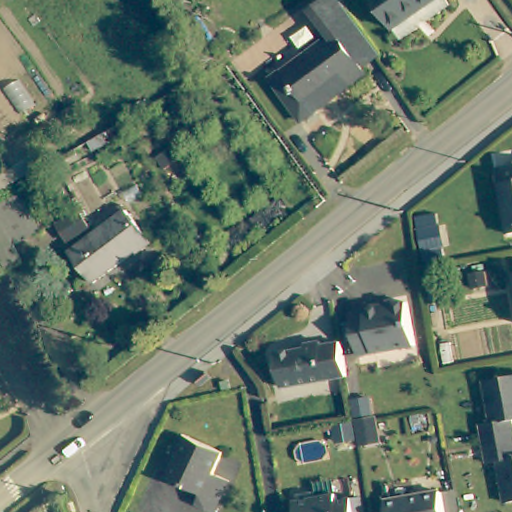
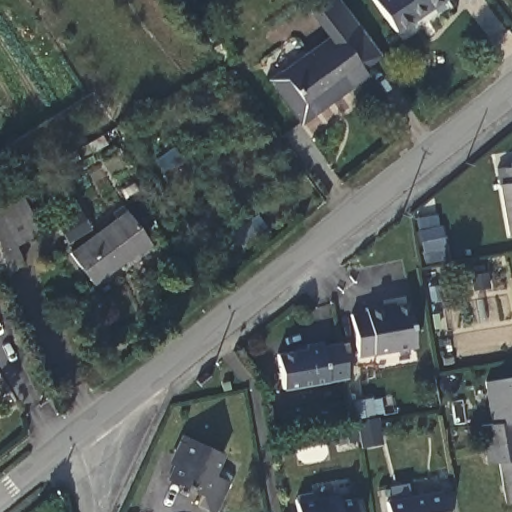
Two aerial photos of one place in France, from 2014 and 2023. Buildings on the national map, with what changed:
unchanged [(276,71),(330,33),(310,6),(319,0),(337,0),(343,8),(375,53),(360,65),(301,106),(276,71)]
unchanged [(396,37),(371,0),(443,0),(445,2),(396,37)]
unchanged [(295,121),(262,77),(275,68),(276,71),(301,106),(360,65),(364,71),(295,121)]
unchanged [(505,169),(512,168),(512,237),(510,237),(501,185),(507,184),(505,169)]
unchanged [(21,195),(39,235),(12,248),(0,222),(0,206),(21,195)]
unchanged [(147,246),(135,254),(131,249),(87,281),(64,247),(124,208),(147,246)]
unchanged [(20,266),(0,277),(0,222),(12,248),(20,266)]
unchanged [(512,275),(510,267),(512,267),(512,275)]
unchanged [(366,312),(365,308),(386,305),(386,309),(408,307),(415,347),(357,356),(353,314),(366,312)]
unchanged [(276,350),(304,345),(303,341),(318,339),(319,343),(338,341),(344,375),(281,385),(276,350)]
unchanged [(512,500),(503,501),(498,461),(488,462),(483,425),(493,423),(486,382),(512,378),(512,500)]
unchanged [(375,414),(357,417),(355,403),(372,400),(375,414)]
unchanged [(381,442),(362,445),(358,420),(377,417),(381,442)]
unchanged [(357,437),(339,440),(336,425),(355,422),(357,437)]
unchanged [(221,452),(211,475),(226,481),(212,512),(193,505),(199,492),(166,478),(180,452),(174,450),(181,435),(221,452)]
unchanged [(295,494),(309,488),(316,493),(316,496),(337,494),(338,501),(353,499),(360,498),(363,512),(298,512),(295,494)]
unchanged [(438,495),(441,512),(384,512),(383,504),(438,495)]

